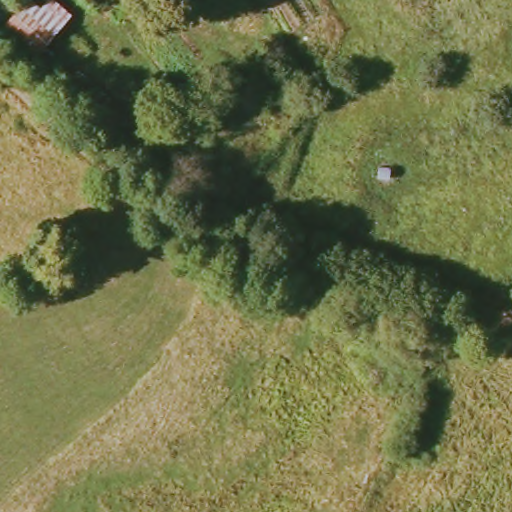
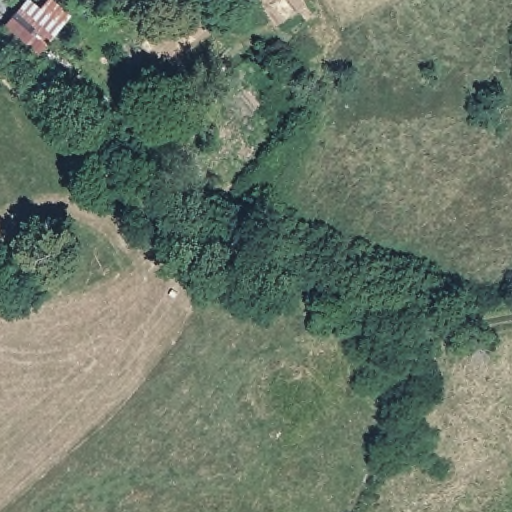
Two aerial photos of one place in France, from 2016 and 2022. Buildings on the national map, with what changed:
unchanged [(52,0),(60,0),(76,17),(28,57),(0,36),(0,35),(27,0),(38,0),(43,7),(52,0)]

